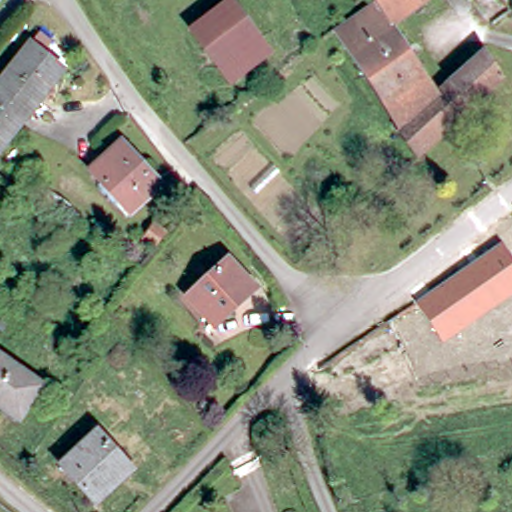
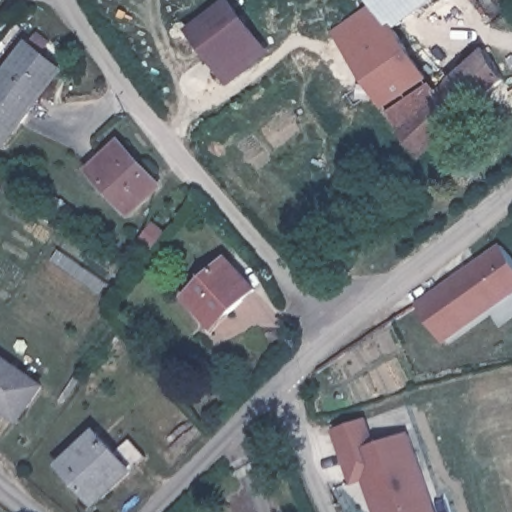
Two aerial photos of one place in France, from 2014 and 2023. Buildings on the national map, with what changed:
unchanged [(225,0),(231,0),(273,47),(234,81),(190,30),(225,0)]
unchanged [(397,28),(427,75),(387,112),(372,91),(336,36),(339,34),(378,1),(377,0),(438,0),(397,28)]
unchanged [(37,47),(34,53),(55,68),(0,140),(0,72),(25,39),(37,47)]
unchanged [(502,110),(496,103),(492,97),(473,114),(452,88),(487,58),(506,85),(512,92),(512,102),(502,110)]
unchanged [(427,155),(420,162),(401,133),(452,88),(473,114),(427,155)]
unchanged [(91,170),(123,145),(159,188),(127,214),(91,170)]
unchanged [(147,223),(163,235),(150,250),(136,236),(147,223)]
unchanged [(512,258),(512,292),(442,341),(417,303),(503,242),(512,258)]
unchanged [(257,294),(232,317),(228,313),(212,325),(188,297),(230,262),(257,294)]
unchanged [(0,356),(40,391),(13,421),(0,410),(0,356)]
new [(411,431),(438,512),(372,512),(362,481),(350,484),(332,429),(367,416),(377,443),(411,431)]
unchanged [(109,493),(96,505),(60,468),(97,434),(127,466),(132,470),(109,493)]

